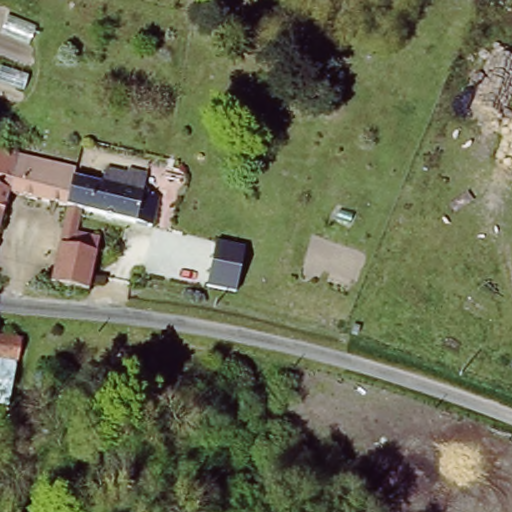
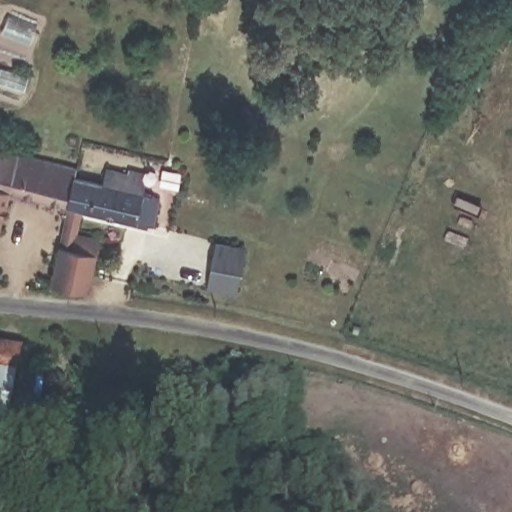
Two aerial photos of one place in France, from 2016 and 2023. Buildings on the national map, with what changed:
unchanged [(10,175),(15,152),(19,153),(74,165),(72,173),(72,177),(65,203),(65,207),(62,219),(56,218),(60,202),(6,189),(0,214),(0,172),(10,175)]
unchanged [(148,222),(65,203),(72,177),(72,173),(102,180),(105,166),(127,172),(128,165),(148,169),(143,191),(155,194),(148,222)]
unchanged [(80,211),(75,230),(78,231),(98,236),(87,283),(86,289),(80,287),(49,279),(62,219),(65,207),(80,211)]
unchanged [(213,240),(244,245),(236,293),(207,287),(213,240)]
unchanged [(25,336),(22,356),(0,353),(0,334),(25,336)]

